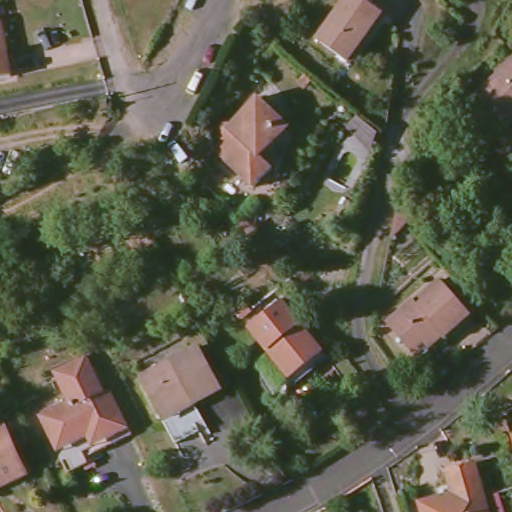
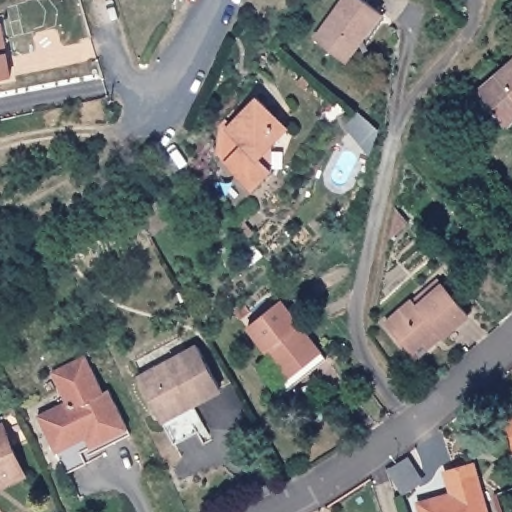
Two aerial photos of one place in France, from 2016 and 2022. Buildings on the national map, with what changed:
unchanged [(342,0),(368,0),(380,9),(346,57),(316,35),(342,0)]
unchanged [(0,25),(9,78),(0,80),(0,25)]
unchanged [(477,94),(512,62),(512,121),(506,127),(477,94)]
unchanged [(254,189),(226,162),(233,155),(224,146),(234,135),(227,128),(256,98),(273,114),(273,144),(259,157),(274,170),(254,189)]
unchanged [(389,237),(396,207),(407,221),(389,237)]
unchanged [(386,324),(413,301),(418,307),(444,284),(469,313),(442,337),(441,335),(415,357),(410,352),(386,324)]
unchanged [(244,321),(276,293),(300,323),(298,326),(301,330),(304,328),(318,345),(324,352),(291,378),(286,371),(244,321)]
unchanged [(138,374),(198,343),(221,383),(191,399),(161,416),(157,409),(138,374)]
unchanged [(64,470),(54,448),(53,444),(36,411),(65,397),(58,381),(50,367),(85,350),(102,385),(108,383),(131,430),(91,449),(84,433),(75,438),(85,459),(64,470)]
unchanged [(512,411),(512,450),(511,451),(503,413),(512,411)]
unchanged [(0,477),(0,420),(22,467),(0,477)]
unchanged [(416,499),(446,491),(439,467),(446,466),(466,460),(476,491),(482,512),(420,512),(416,499)]

